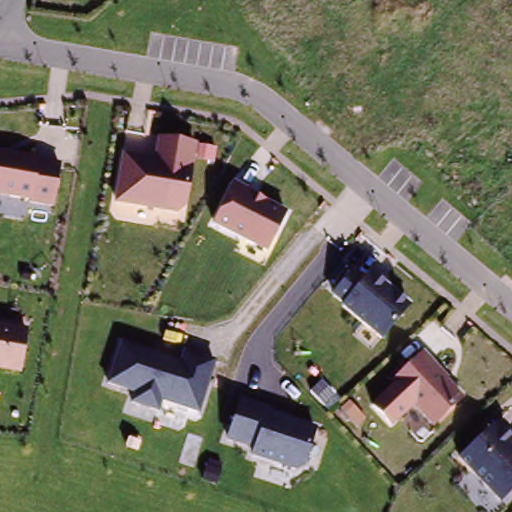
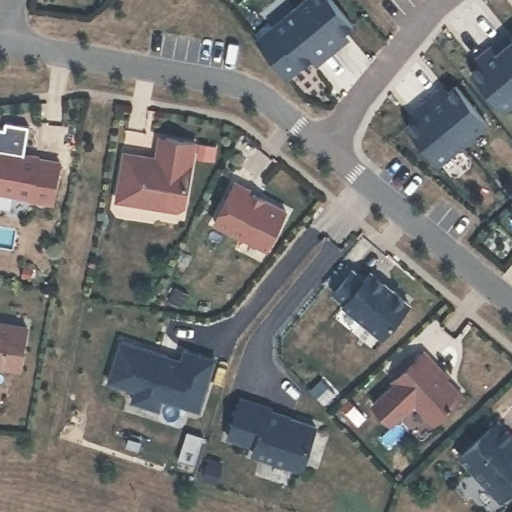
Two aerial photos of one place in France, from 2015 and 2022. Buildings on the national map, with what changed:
new [(335,0),(356,25),(343,36),(348,43),(336,52),(299,7),(307,0),(335,0)]
new [(299,7),(336,52),(325,61),(319,55),(306,66),(274,27),(299,7)]
new [(511,43),(512,41),(512,68),(494,45),(505,36),(511,43)]
new [(482,55),(494,45),(512,68),(512,106),(506,111),(474,72),(487,61),(482,55)]
new [(441,89),(446,96),(459,85),(491,124),(466,144),(429,99),(441,89)]
new [(422,115),(417,109),(429,99),(466,144),(441,165),(409,126),(422,115)]
unchanged [(198,144),(188,204),(179,213),(114,203),(123,150),(154,156),(158,138),(198,144)]
unchanged [(0,196),(0,150),(62,162),(54,207),(0,196)]
unchanged [(288,212),(267,253),(212,224),(234,183),(288,212)]
unchanged [(380,339),(339,307),(341,304),(331,295),(352,269),(363,277),(368,270),(410,304),(380,339)]
unchanged [(20,374),(0,370),(0,324),(28,329),(20,374)]
unchanged [(200,414),(164,402),(160,413),(130,403),(133,393),(107,385),(120,342),(179,361),(182,351),(216,362),(200,414)]
unchanged [(433,427),(390,383),(422,352),(448,377),(446,379),(465,397),(433,427)]
unchanged [(302,473),(251,457),(253,450),(226,441),(238,401),(317,429),(302,473)]
unchanged [(458,457),(495,422),(512,438),(512,492),(500,504),(458,457)]

